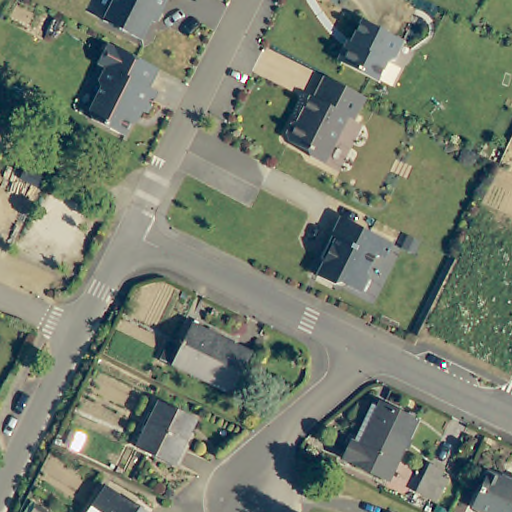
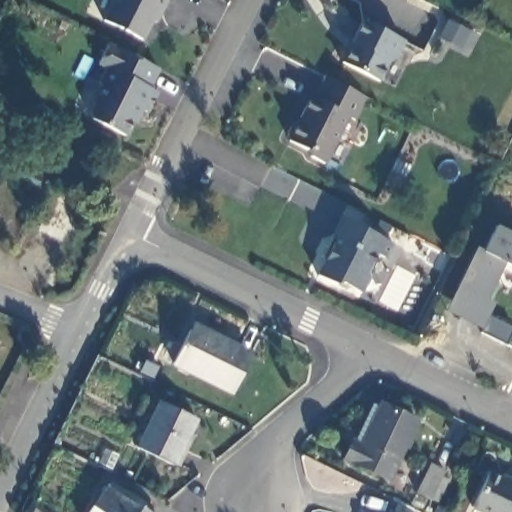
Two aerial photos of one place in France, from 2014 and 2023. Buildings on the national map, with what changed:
unchanged [(164,0),(160,9),(156,6),(140,36),(102,16),(110,0),(164,0)]
unchanged [(358,18),(399,39),(390,57),(383,59),(373,78),(337,59),(335,54),(340,45),(345,44),(358,18)]
unchanged [(148,89),(156,94),(146,115),(137,110),(123,138),(90,121),(87,114),(99,91),(97,84),(105,69),(97,65),(106,44),(157,71),(148,89)]
unchanged [(365,93),(353,116),(347,113),(323,160),(310,153),(308,147),(288,137),(286,131),(292,119),(298,118),(300,119),(304,110),(302,109),(310,93),(314,95),(324,73),(365,93)]
unchanged [(378,249),(369,269),(371,273),(362,290),(341,279),(336,281),(319,272),(325,260),(324,256),(323,253),(343,213),(345,214),(395,240),(387,254),(378,249)]
new [(488,299),(495,303),(488,316),(512,327),(512,331),(506,342),(447,313),(476,247),(484,251),(495,224),(512,233),(512,268),(506,265),(488,299)]
unchanged [(173,361),(192,324),(251,357),(231,393),(173,361)]
unchanged [(143,449),(163,403),(198,418),(179,465),(143,449)]
unchanged [(340,463),(346,447),(356,449),(372,404),(406,417),(387,480),(340,463)]
unchanged [(444,470),(436,498),(421,494),(428,466),(444,470)]
unchanged [(466,507),(480,475),(503,484),(506,477),(512,480),(512,512),(469,512),(465,511),(466,507)]
unchanged [(118,490),(152,512),(103,512),(118,490)]

